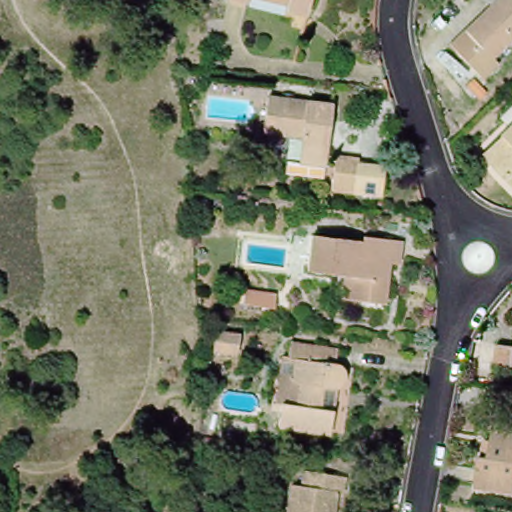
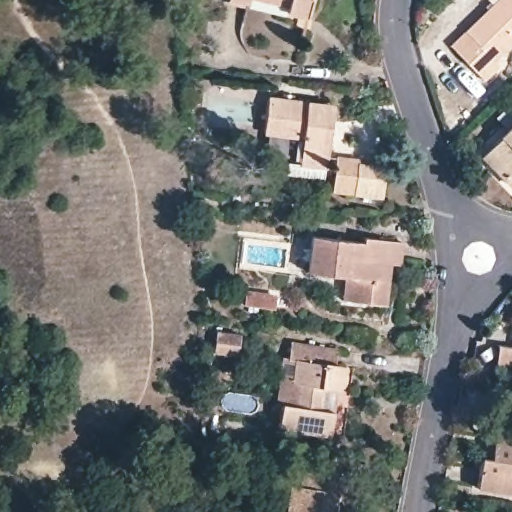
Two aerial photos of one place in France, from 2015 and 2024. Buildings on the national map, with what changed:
unchanged [(246,11),(231,9),(234,0),(249,0),(246,11)]
unchanged [(305,15),(281,9),(249,0),(309,0),(305,15)]
unchanged [(496,63),(505,72),(490,89),(454,55),(500,0),(512,0),(512,46),(496,63)]
unchanged [(289,167),(288,156),(301,157),(303,136),(265,132),(269,99),(337,105),(329,159),(327,171),(289,167)]
unchanged [(512,194),(482,166),(512,137),(512,193),(512,194)]
unchanged [(372,169),(399,171),(398,200),(344,194),(347,159),(372,162),(372,169)]
unchanged [(351,283),(319,281),(321,247),(368,249),(373,244),(402,247),(398,268),(378,267),(384,283),(389,285),(384,309),(362,307),(350,306),(351,283)]
unchanged [(504,318),(512,313),(512,330),(504,318)]
unchanged [(489,363),(493,347),(512,349),(512,368),(489,363)]
unchanged [(350,385),(328,382),(326,408),(335,408),(331,430),(279,425),(281,402),(299,402),(302,382),(296,380),(297,357),(351,362),(350,385)]
unchanged [(512,415),(512,491),(473,485),(478,451),(481,436),(494,436),(498,412),(512,415)]
unchanged [(335,500),(334,512),(287,512),(289,497),(301,497),(303,479),(345,482),(342,502),(335,500)]

